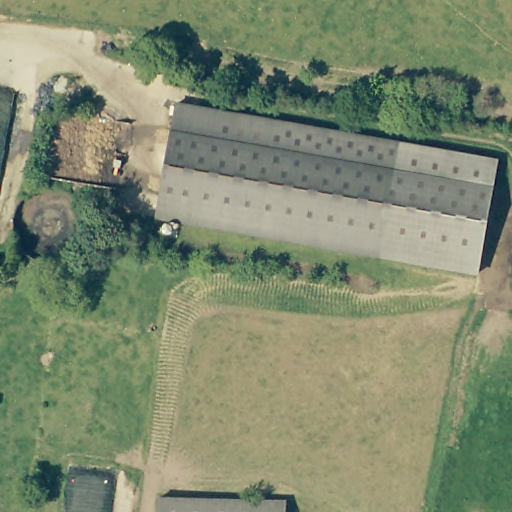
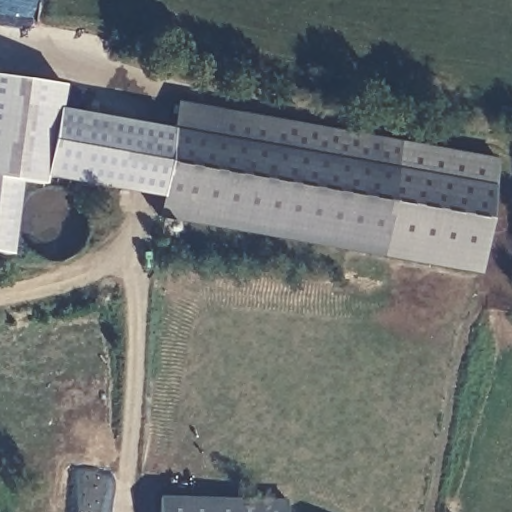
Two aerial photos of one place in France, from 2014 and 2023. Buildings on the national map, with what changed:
new [(41,185),(19,181),(8,255),(0,254),(0,76),(61,84),(58,108),(174,128),(162,198),(43,177),(41,185)]
unchanged [(159,217),(179,103),(190,105),(175,220),(159,217)]
unchanged [(175,220),(190,105),(403,141),(381,255),(175,220)]
unchanged [(381,255),(403,141),(499,157),(481,273),(381,255)]
unchanged [(160,512),(160,498),(287,500),(287,512),(160,512)]

